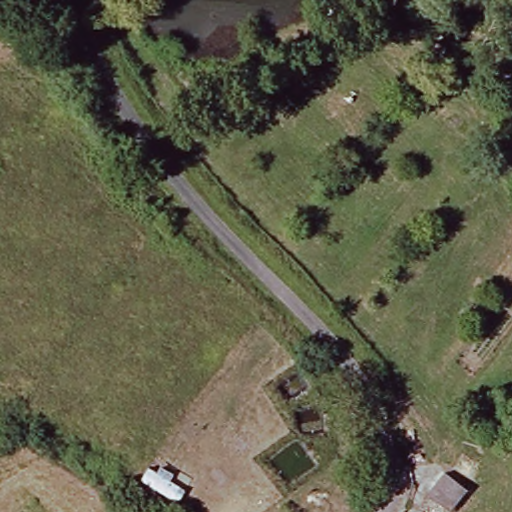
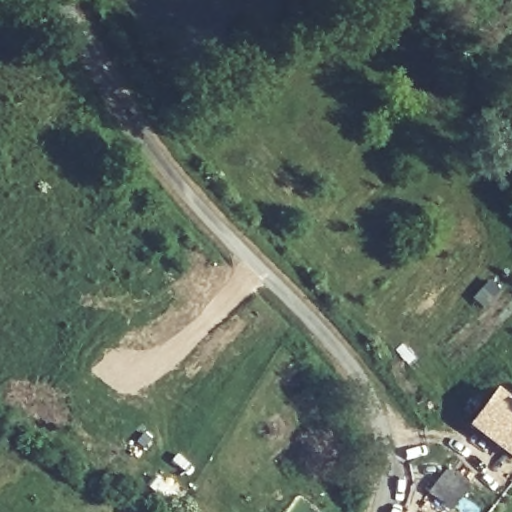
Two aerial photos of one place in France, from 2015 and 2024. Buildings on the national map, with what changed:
new [(512,463),(465,428),(493,392),(512,407),(512,463)]
unchanged [(442,512),(423,499),(439,476),(462,491),(448,512),(442,512)]

